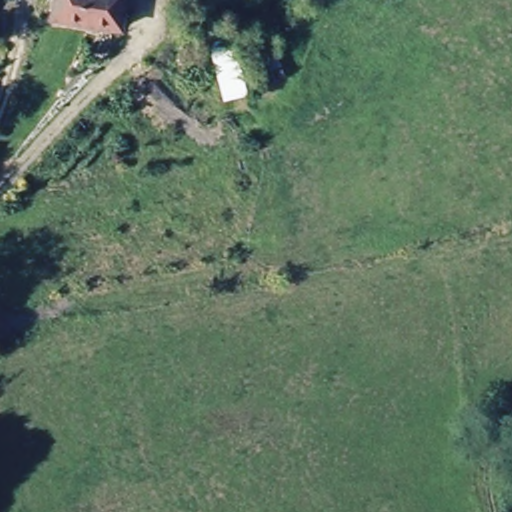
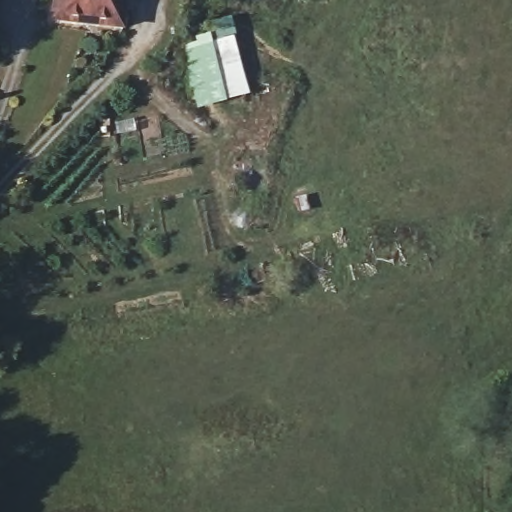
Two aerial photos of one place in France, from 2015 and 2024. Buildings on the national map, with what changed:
unchanged [(52,20),(54,0),(124,0),(122,27),(52,20)]
new [(182,66),(191,62),(193,69),(197,67),(199,71),(212,66),(210,59),(224,54),(216,33),(225,30),(227,37),(230,37),(251,92),(200,112),(182,66)]

